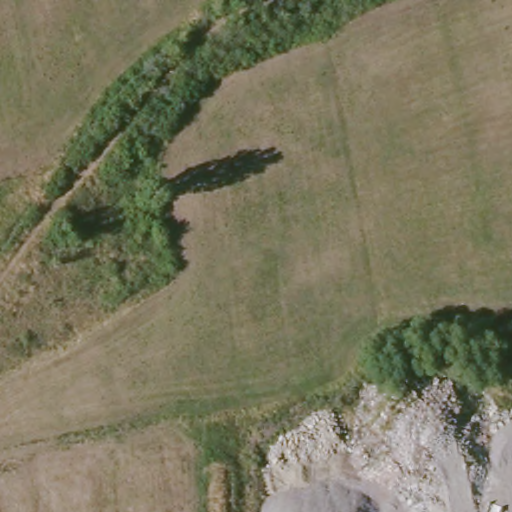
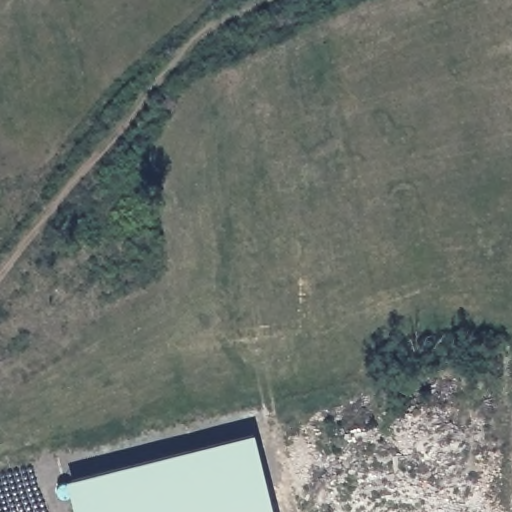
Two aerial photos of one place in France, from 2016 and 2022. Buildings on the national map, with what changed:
new [(68,480),(254,433),(274,512),(76,512),(68,480)]

